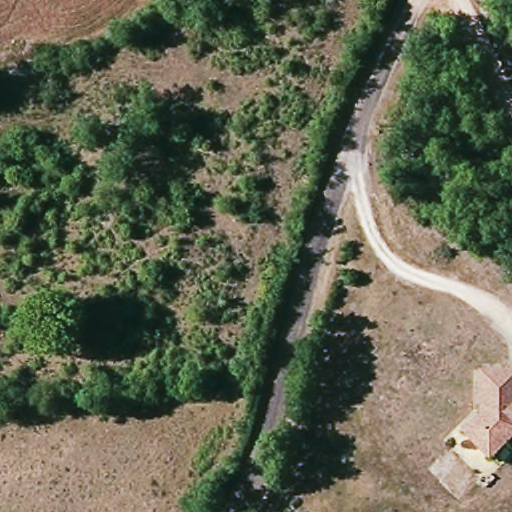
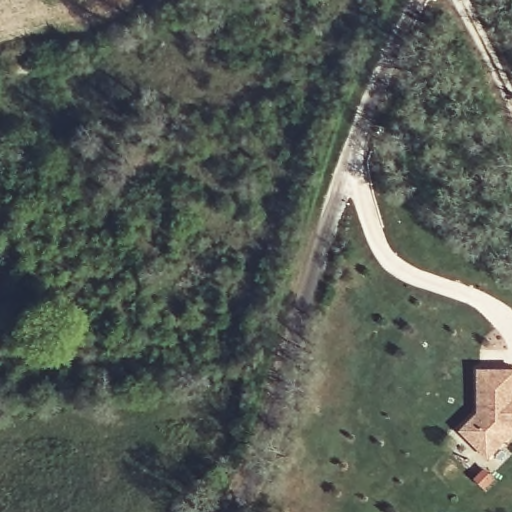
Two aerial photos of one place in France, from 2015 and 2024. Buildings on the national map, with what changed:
unchanged [(478,413),(480,370),(512,369),(512,434),(491,455),(464,428),(478,413)]

